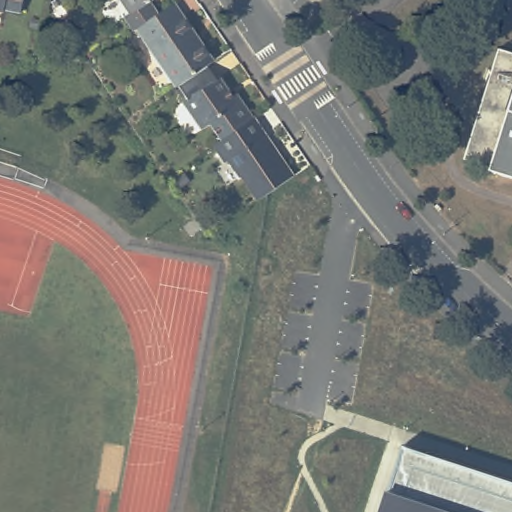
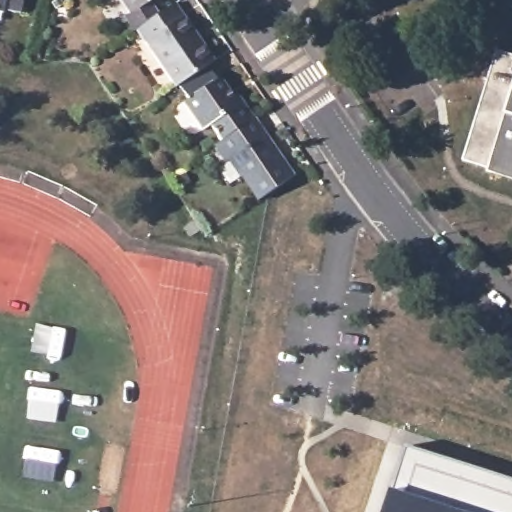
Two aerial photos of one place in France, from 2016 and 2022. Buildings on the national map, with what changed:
unchanged [(0,11),(0,0),(28,0),(25,13),(10,10),(8,9),(7,12),(0,11)]
unchanged [(129,16),(135,12),(126,0),(158,0),(154,2),(162,15),(140,30),(139,31),(139,30),(129,16)]
unchanged [(140,30),(162,15),(180,3),(219,60),(211,65),(182,85),(180,87),(140,30)]
unchanged [(465,157),(500,48),(512,52),(512,176),(491,169),(492,166),(465,157)]
unchanged [(192,99),(182,85),(211,65),(221,79),(224,77),(237,97),(242,93),(246,100),(258,118),(226,140),(225,140),(215,123),(206,129),(187,102),(192,99)]
unchanged [(234,159),(230,162),(219,145),(226,140),(258,118),(268,132),(281,152),(298,176),(262,200),(249,178),(246,179),(236,164),(234,159)]
unchanged [(195,219),(201,229),(190,237),(184,227),(195,219)]
unchanged [(512,485),(512,512),(383,512),(403,450),(512,485)]

